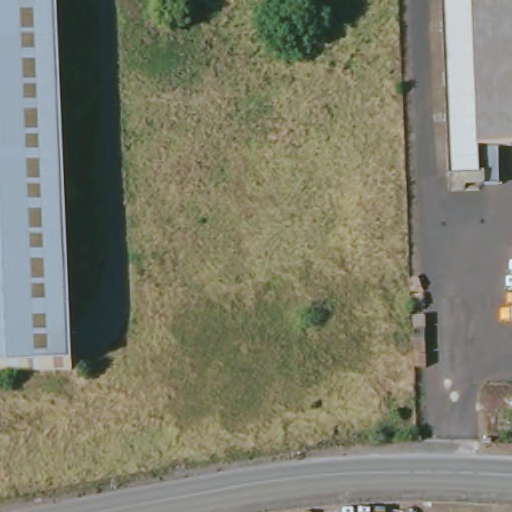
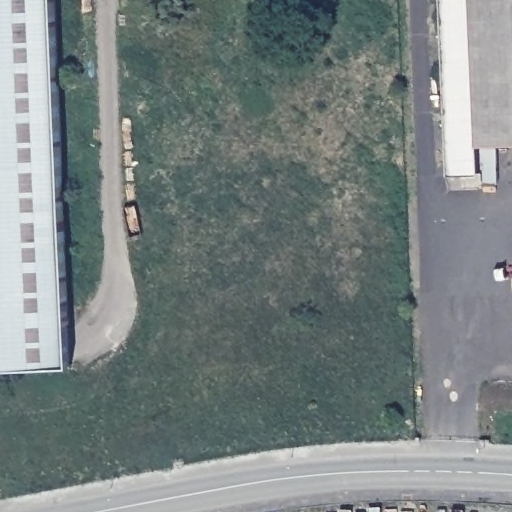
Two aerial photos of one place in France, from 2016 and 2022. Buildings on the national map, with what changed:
unchanged [(70,367),(0,370),(0,0),(55,0),(70,367)]
unchanged [(478,146),(479,175),(448,176),(441,0),(512,0),(512,145),(478,146)]

